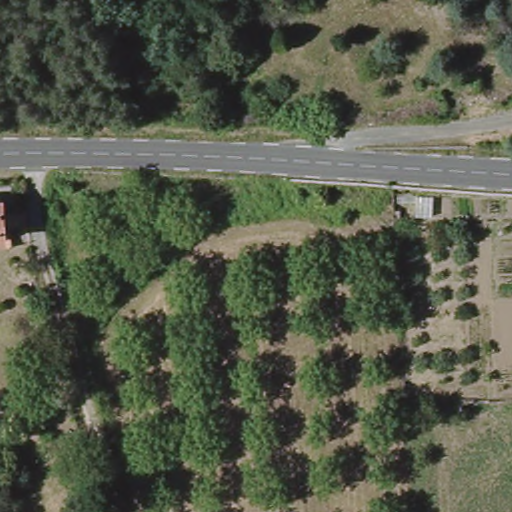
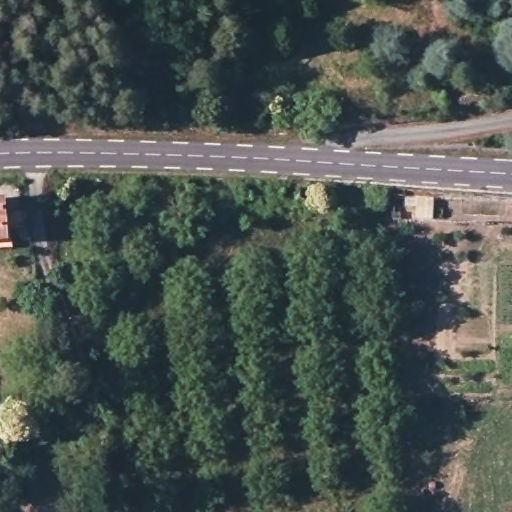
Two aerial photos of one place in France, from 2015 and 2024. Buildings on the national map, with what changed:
unchanged [(10,201),(13,217),(26,215),(30,231),(15,232),(15,242),(0,244),(0,202),(10,201)]
unchanged [(10,482),(16,503),(1,507),(0,503),(0,486),(10,482)]

